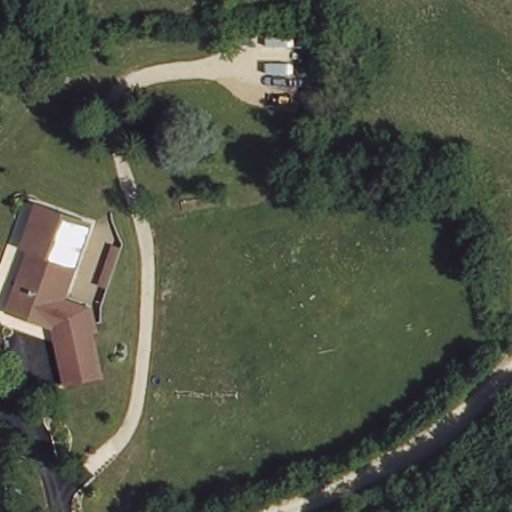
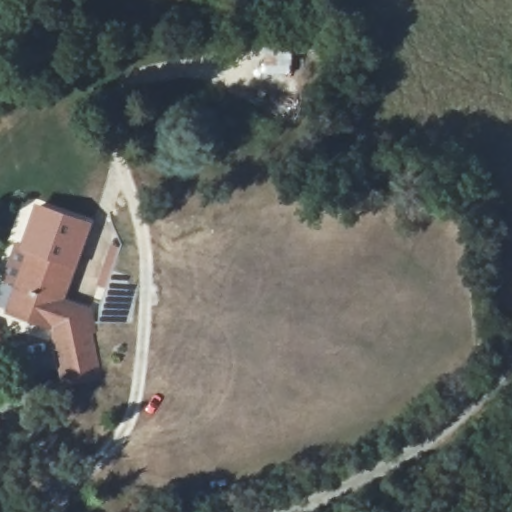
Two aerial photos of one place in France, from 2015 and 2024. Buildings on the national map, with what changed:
unchanged [(18,276),(36,233),(25,229),(33,211),(87,231),(62,298),(51,293),(43,314),(23,307),(12,303),(18,276)]
unchanged [(43,314),(51,293),(62,298),(95,311),(105,376),(62,385),(49,317),(43,314)]

